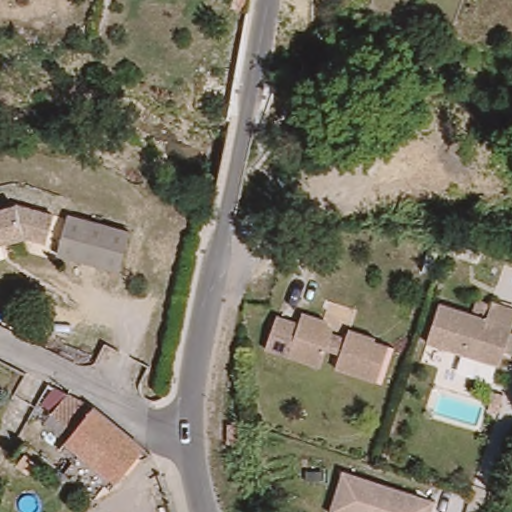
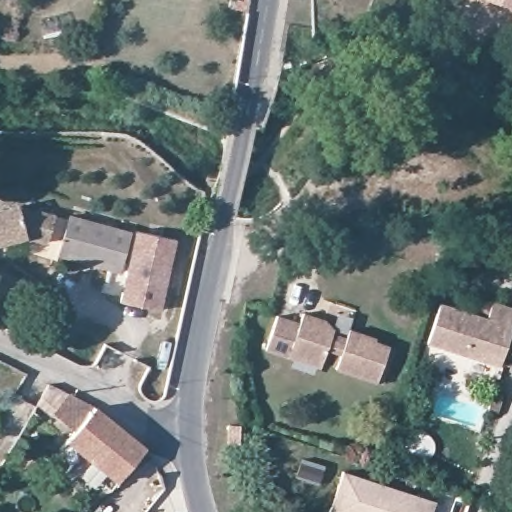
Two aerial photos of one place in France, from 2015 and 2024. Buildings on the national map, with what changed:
unchanged [(19,202),(56,212),(49,238),(27,233),(0,240),(0,207),(19,202)]
unchanged [(422,205),(422,219),(410,219),(410,205),(422,205)]
unchanged [(70,215),(130,231),(119,272),(60,256),(70,215)]
new [(136,237),(176,246),(161,317),(121,309),(136,237)]
unchanged [(440,308),(487,323),(491,309),(512,315),(512,331),(501,370),(428,348),(440,308)]
unchanged [(284,361),(269,356),(280,320),(302,327),(305,319),(326,325),(335,337),(332,345),(347,350),(351,336),(378,344),(377,348),(390,352),(380,387),(339,374),(343,360),(328,356),(327,360),(323,373),(284,361)]
unchanged [(486,414),(492,395),(502,398),(495,417),(486,414)]
unchanged [(146,454),(118,487),(68,446),(77,436),(55,425),(68,400),(95,412),(146,454)]
unchanged [(241,446),(230,445),(231,426),(242,427),(241,446)]
unchanged [(431,512),(329,512),(343,472),(397,490),(409,494),(435,503),(431,512)]

